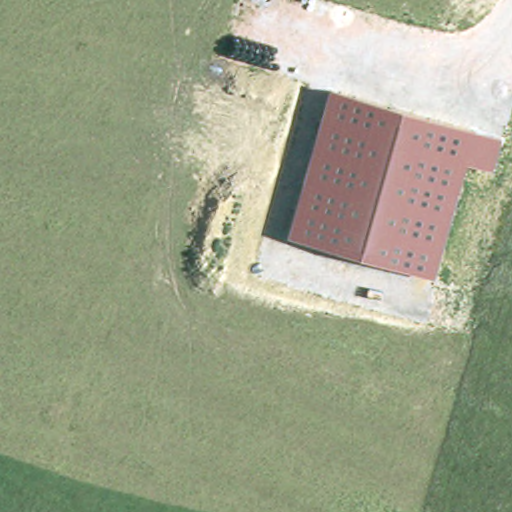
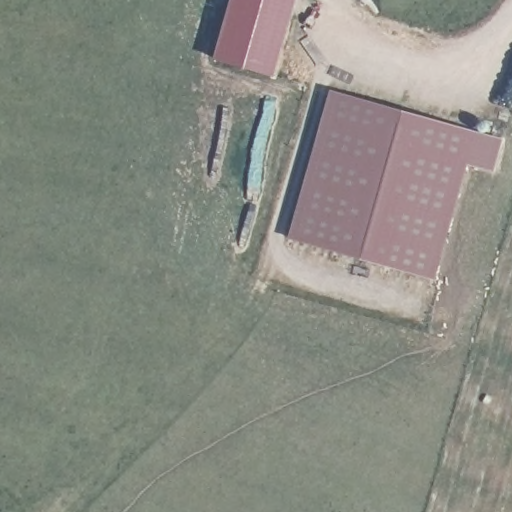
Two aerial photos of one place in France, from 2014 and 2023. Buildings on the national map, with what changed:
new [(231,0),(297,0),(275,77),(215,60),(231,0)]
unchanged [(503,139),(495,172),(469,165),(437,278),(287,237),(330,90),(503,139)]

